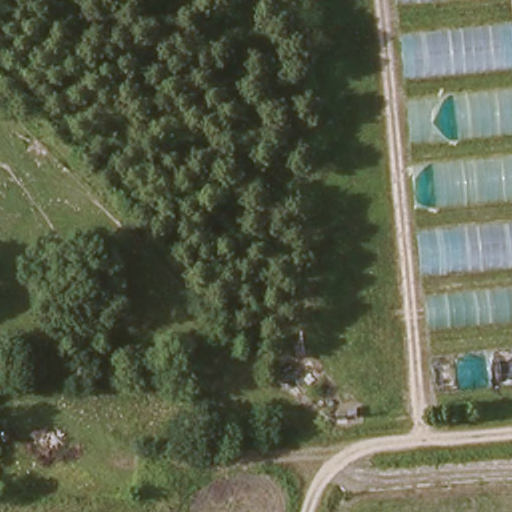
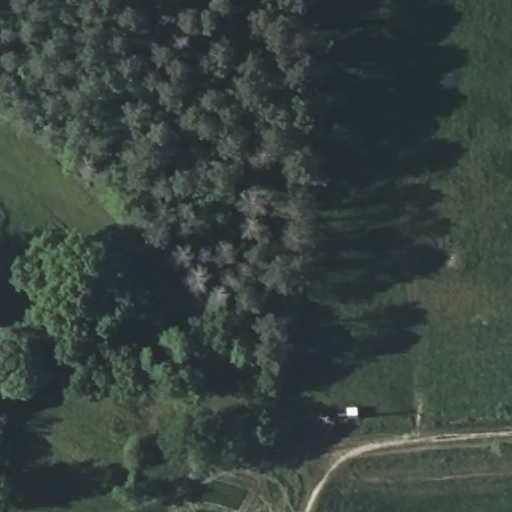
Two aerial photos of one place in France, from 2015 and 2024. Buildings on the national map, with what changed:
demolished [(512,8),(512,381),(439,390),(401,0),(511,0),(512,8)]

